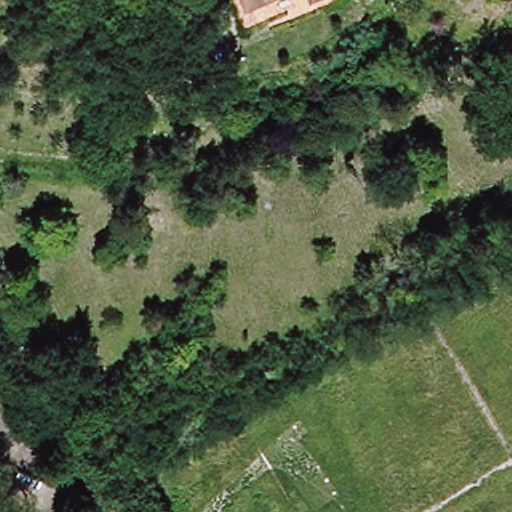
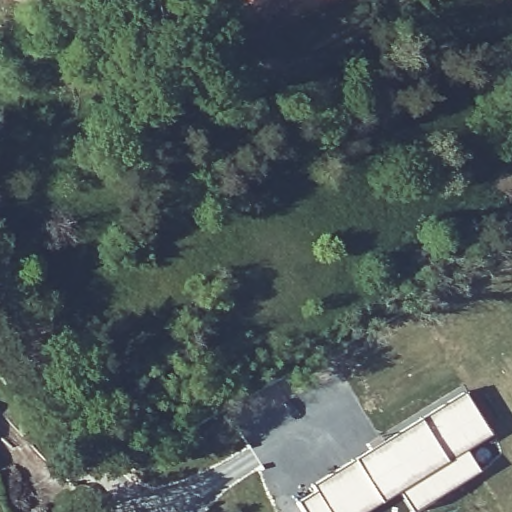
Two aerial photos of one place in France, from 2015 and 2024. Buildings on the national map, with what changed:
unchanged [(231,0),(332,0),(277,25),(273,19),(246,31),(231,0)]
new [(315,493),(312,487),(463,394),(488,437),(464,452),(477,473),(415,512),(409,512),(398,493),(366,512),(301,512),(297,504),(315,493)]

